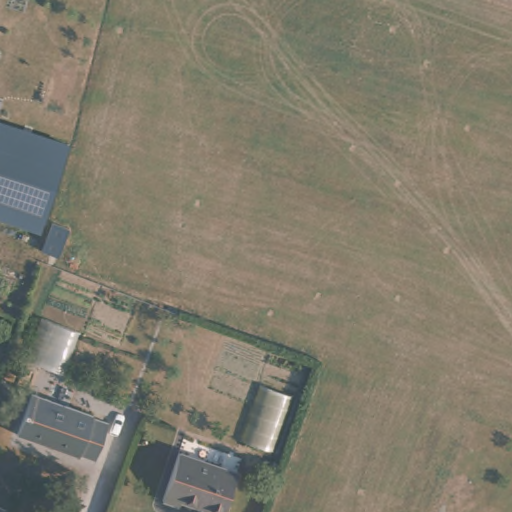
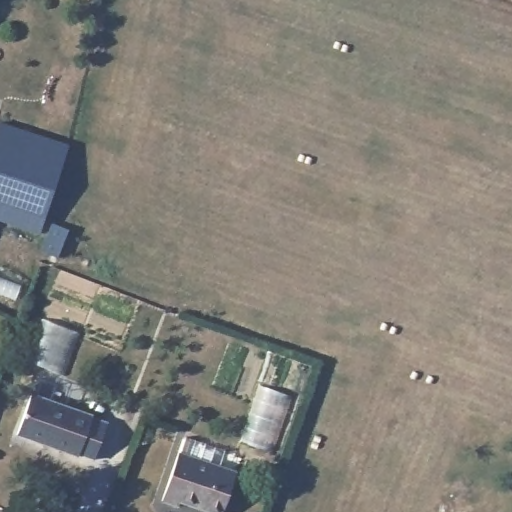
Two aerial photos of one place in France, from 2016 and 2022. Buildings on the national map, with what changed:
unchanged [(41,230),(0,215),(0,123),(67,146),(41,230)]
unchanged [(80,450),(78,454),(16,432),(30,389),(94,411),(92,416),(100,418),(107,421),(94,455),(88,452),(80,450)]
unchanged [(236,475),(222,512),(209,512),(179,502),(177,507),(162,502),(179,455),(236,475)]

